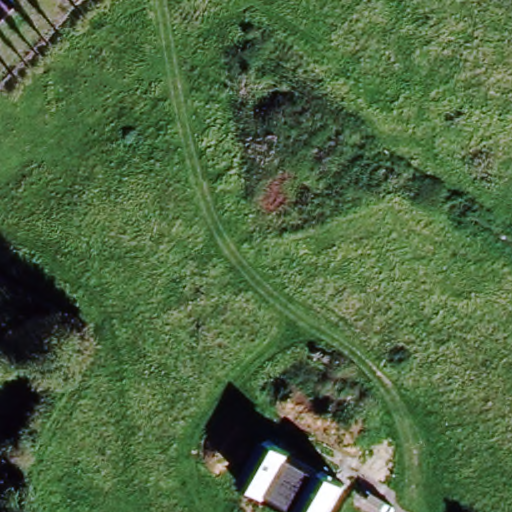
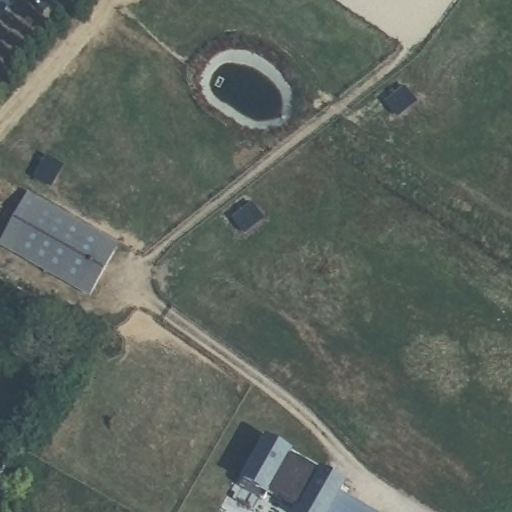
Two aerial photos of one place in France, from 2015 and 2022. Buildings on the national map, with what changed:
unchanged [(0,17),(0,0),(3,0),(10,5),(0,17)]
new [(89,297),(0,246),(0,241),(28,193),(119,245),(89,297)]
unchanged [(294,453),(291,459),(346,486),(332,512),(295,512),(296,510),(243,482),(266,438),(294,453)]
unchanged [(0,477),(6,467),(20,476),(9,496),(0,491),(0,477)]

